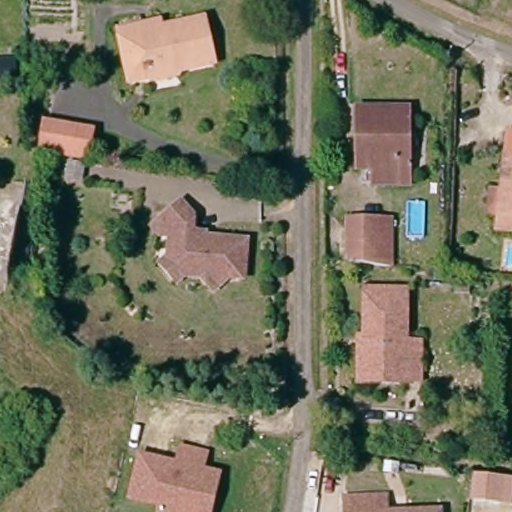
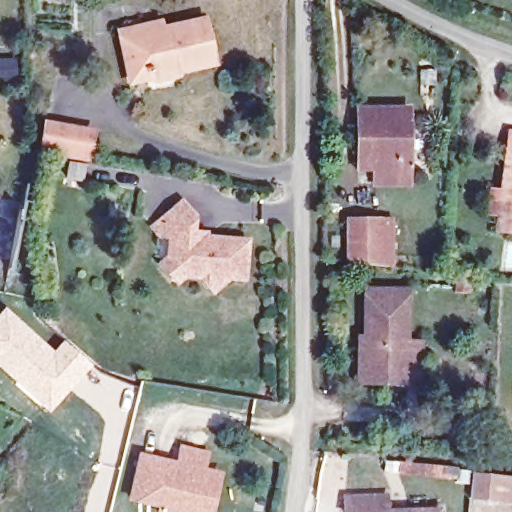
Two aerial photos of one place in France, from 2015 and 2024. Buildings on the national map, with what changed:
unchanged [(214,61),(133,80),(122,30),(142,25),(161,21),(163,29),(205,20),(214,61)]
unchanged [(381,161),(377,160),(366,160),(368,123),(369,102),(416,105),(412,163),(411,180),(380,177),(381,161)]
unchanged [(84,155),(39,148),(45,119),(87,127),(84,155)]
unchanged [(506,217),(493,216),(496,194),(507,195),(512,143),(512,232),(504,231),(506,217)]
unchanged [(164,267),(158,259),(167,251),(169,232),(159,231),(151,221),(179,199),(191,213),(183,219),(193,231),(243,235),(240,270),(226,269),(220,274),(208,282),(199,271),(182,270),(172,277),(164,267)]
unchanged [(346,257),(349,214),(379,216),(393,218),(391,261),(377,260),(346,257)]
unchanged [(359,332),(366,333),(368,287),(409,290),(407,338),(424,339),(423,379),(408,378),(358,377),(359,332)]
new [(4,305),(53,350),(63,339),(91,365),(48,412),(0,369),(0,311),(4,305)]
unchanged [(179,446),(209,453),(206,470),(221,473),(213,512),(157,512),(158,508),(128,501),(137,453),(175,461),(179,446)]
unchanged [(485,463),(512,465),(512,493),(482,490),(485,463)]
unchanged [(345,509),(344,492),(385,490),(386,508),(437,505),(438,512),(365,512),(365,507),(345,509)]

